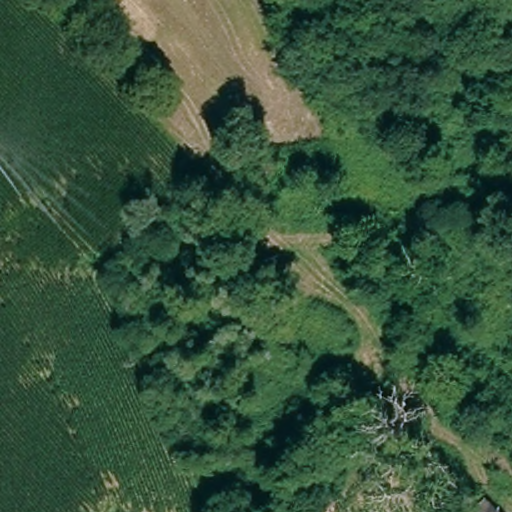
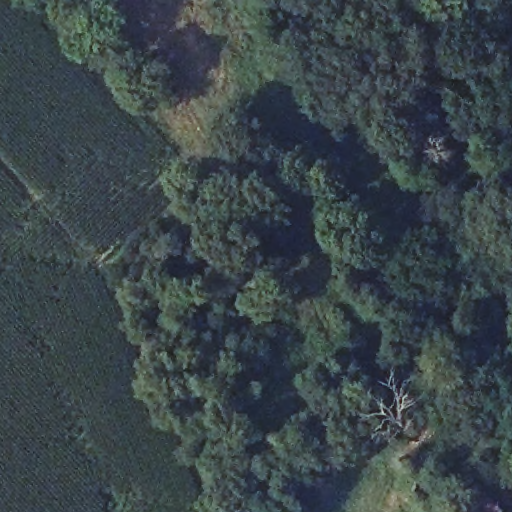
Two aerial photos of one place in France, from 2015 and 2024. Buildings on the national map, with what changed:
unchanged [(480,426),(467,441),(448,422),(461,410),(480,426)]
unchanged [(509,512),(469,512),(488,492),(509,512)]

